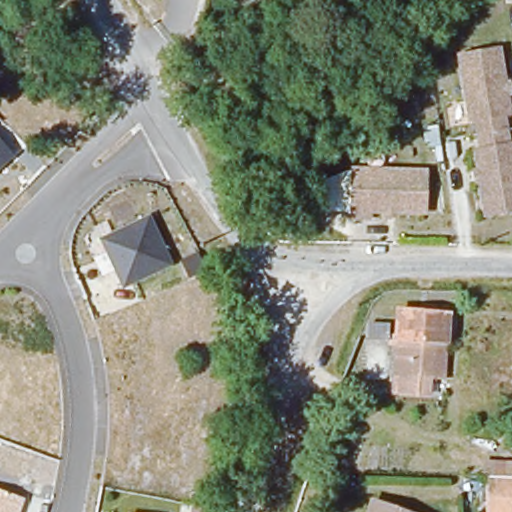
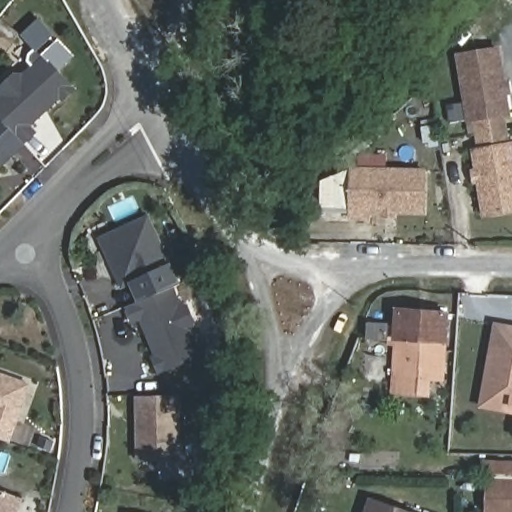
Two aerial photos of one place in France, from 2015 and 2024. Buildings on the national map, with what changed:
new [(1,29),(0,29),(0,12),(8,19),(20,28),(12,38),(1,29)]
new [(36,130),(24,140),(0,114),(0,93),(1,92),(2,83),(14,71),(23,72),(44,52),(75,86),(63,97),(60,94),(45,109),(40,112),(30,122),(36,130)]
unchanged [(475,155),(481,154),(476,124),(469,125),(458,60),(497,54),(509,118),(502,119),(507,149),(512,148),(512,214),(486,219),(475,155)]
unchanged [(0,172),(0,138),(17,156),(0,172)]
unchanged [(354,175),(426,176),(426,217),(395,217),(385,217),(370,217),(370,224),(352,224),(354,175)]
unchanged [(175,265),(124,290),(100,239),(152,215),(175,265)]
new [(185,257),(201,250),(210,268),(192,275),(185,257)]
new [(142,320),(133,323),(126,308),(173,289),(179,304),(187,307),(194,323),(191,331),(201,356),(160,373),(154,358),(157,357),(150,338),(147,333),(142,320)]
unchanged [(397,340),(398,311),(447,315),(446,343),(397,340)]
unchanged [(388,325),(387,339),(367,337),(368,324),(388,325)]
new [(512,398),(512,413),(480,406),(496,324),(501,325),(487,393),(512,398)]
new [(487,393),(501,325),(512,327),(512,398),(487,393)]
unchanged [(395,375),(397,340),(446,343),(443,379),(395,375)]
new [(30,383),(24,400),(10,441),(0,438),(0,373),(12,377),(30,383)]
new [(180,459),(139,460),(137,395),(179,394),(180,459)]
unchanged [(492,487),(512,488),(512,512),(491,512),(492,487)]
unchanged [(21,512),(0,512),(0,490),(26,499),(21,512)]
unchanged [(372,501),(402,512),(369,512),(372,501)]

